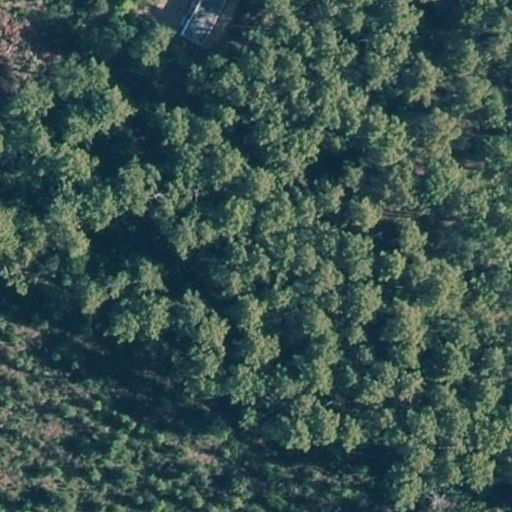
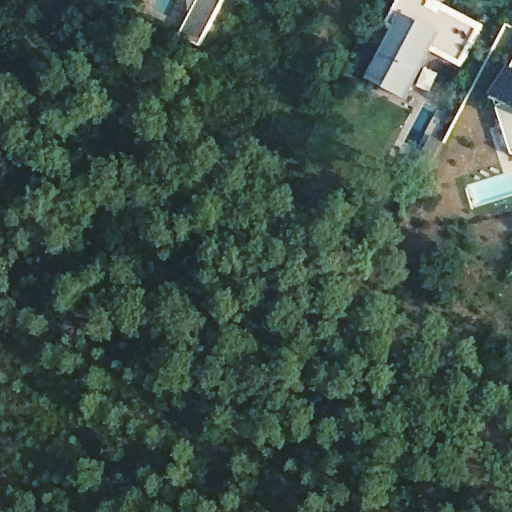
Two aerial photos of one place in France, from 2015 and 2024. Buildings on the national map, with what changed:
unchanged [(199,0),(222,0),(200,46),(180,36),(199,0)]
new [(483,23),(463,62),(436,47),(407,99),(369,80),(397,31),(388,27),(402,0),(436,0),(483,23)]
new [(497,97),(512,69),(512,144),(497,97)]

